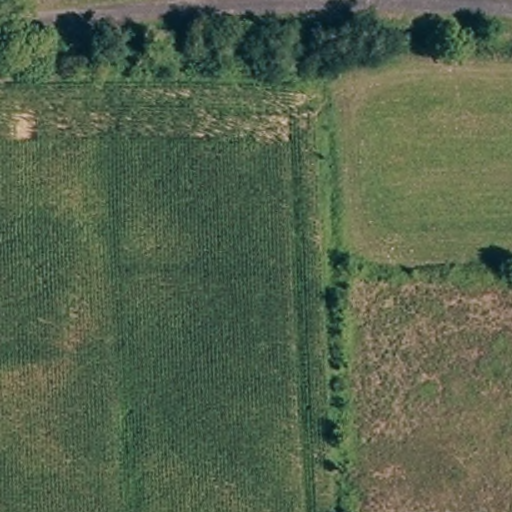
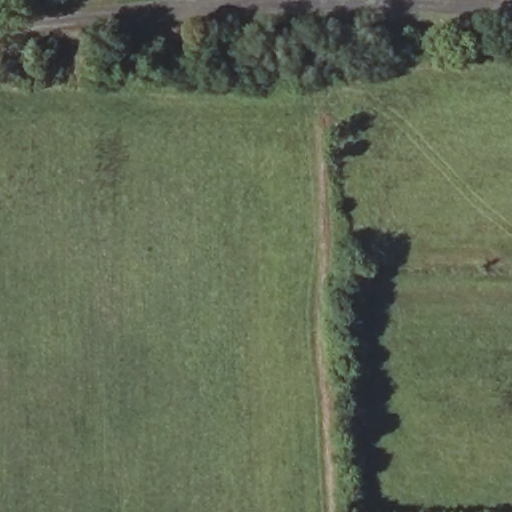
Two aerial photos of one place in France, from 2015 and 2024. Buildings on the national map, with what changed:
[]

